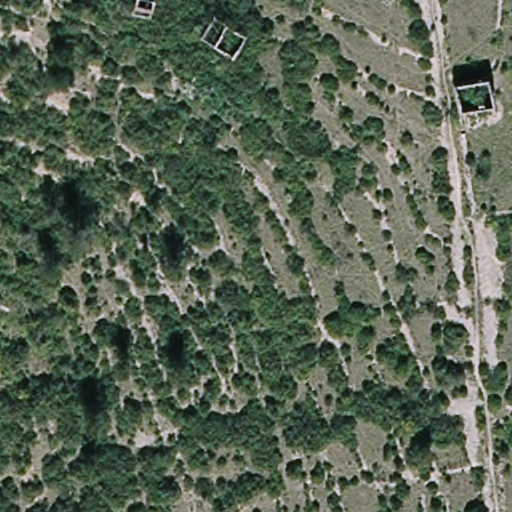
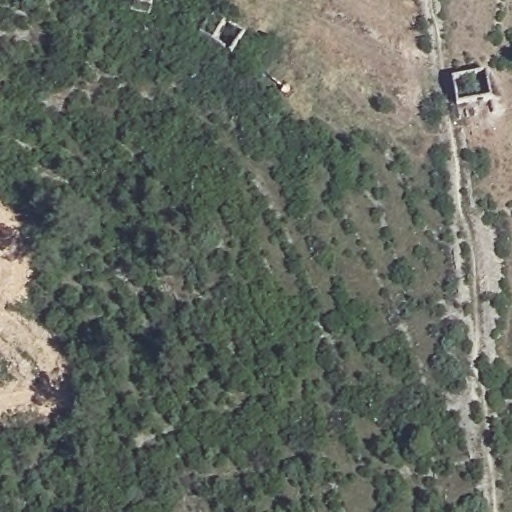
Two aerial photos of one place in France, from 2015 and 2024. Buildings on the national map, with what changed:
[]

